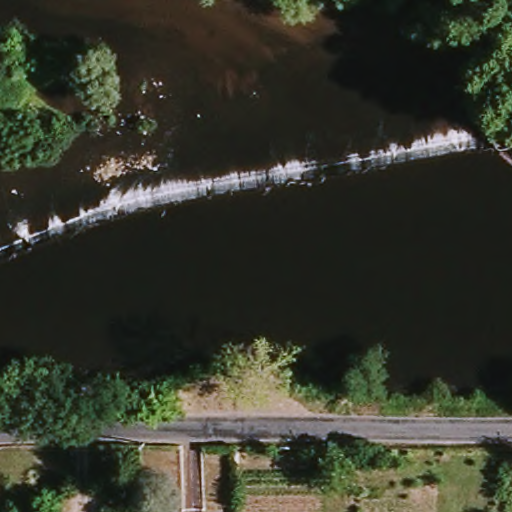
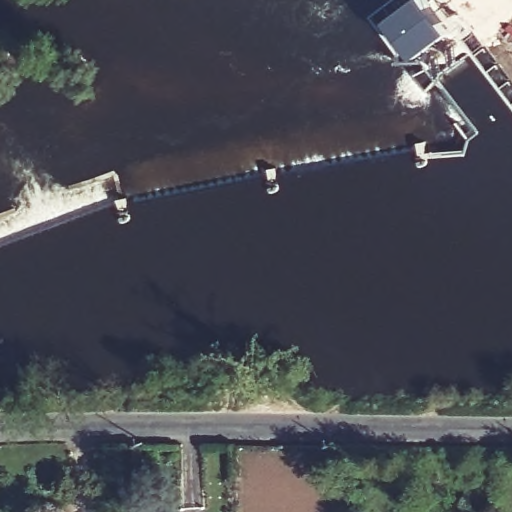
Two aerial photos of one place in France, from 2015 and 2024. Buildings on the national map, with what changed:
new [(390,0),(416,0),(391,21),(410,47),(400,55),(368,16),(390,0)]
new [(416,0),(433,0),(456,31),(418,57),(410,47),(391,21),(416,0)]

